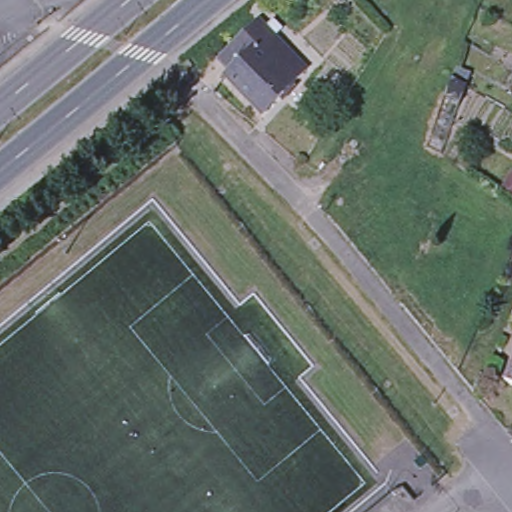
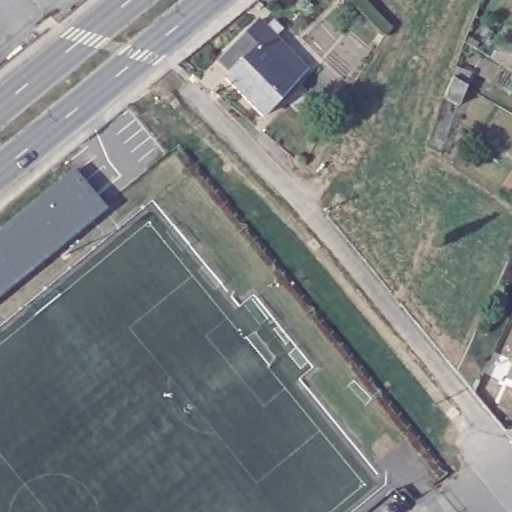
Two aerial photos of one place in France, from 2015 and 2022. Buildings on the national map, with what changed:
unchanged [(257,46),(232,71),(220,59),(258,21),(306,69),(292,84),(257,46)]
unchanged [(257,46),(292,84),(277,102),(263,116),(225,77),(232,71),(257,46)]
unchanged [(467,87),(459,107),(445,99),(452,79),(467,87)]
new [(75,166),(109,207),(78,232),(0,296),(0,230),(75,166)]
unchanged [(512,362),(512,385),(503,381),(512,362)]

